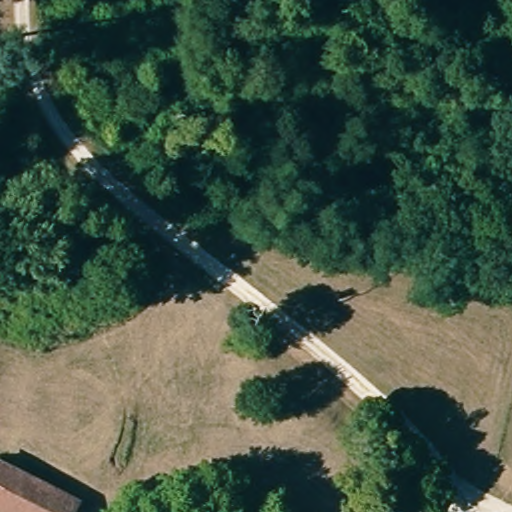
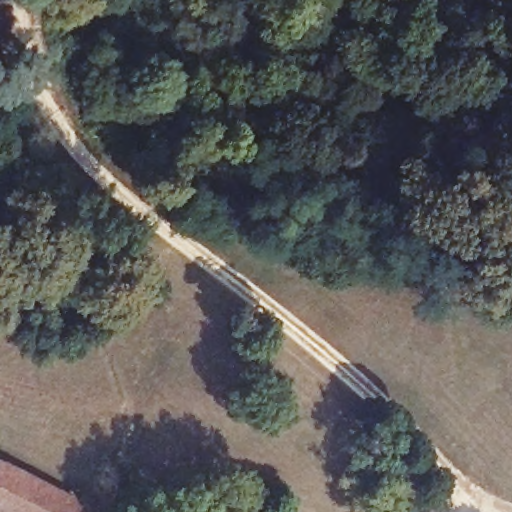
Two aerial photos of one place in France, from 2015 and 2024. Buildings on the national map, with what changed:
unchanged [(79,512),(10,512),(0,507),(0,461),(84,502),(79,512)]

